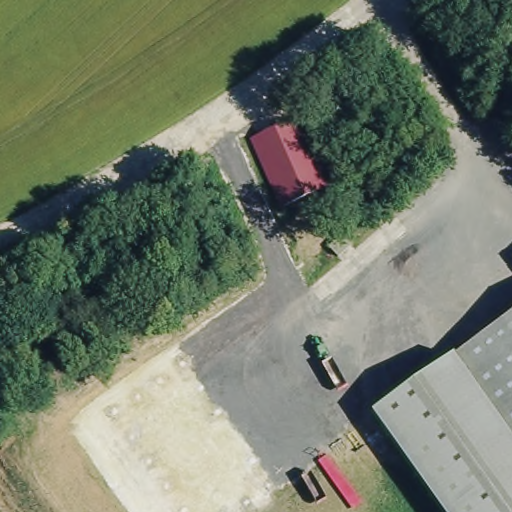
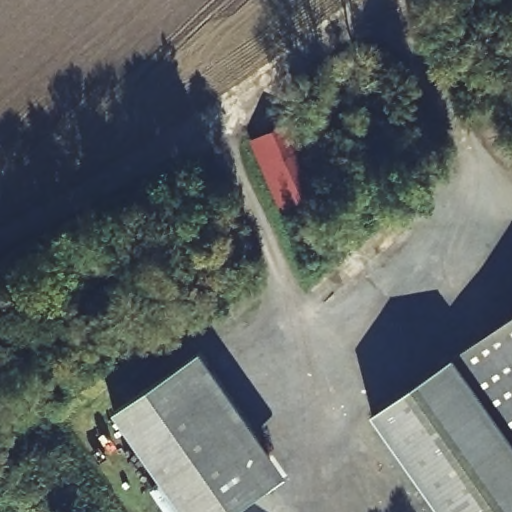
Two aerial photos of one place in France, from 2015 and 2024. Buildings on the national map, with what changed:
unchanged [(276,110),(302,166),(275,178),(250,122),(276,110)]
unchanged [(372,408),(512,314),(512,512),(444,512),(372,408)]
new [(114,412),(201,351),(285,474),(233,512),(184,512),(114,412)]

